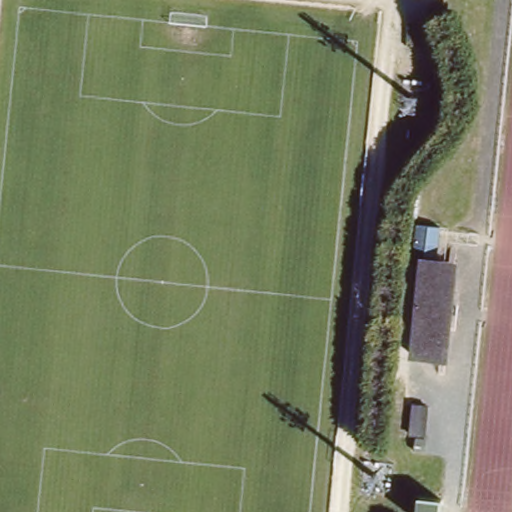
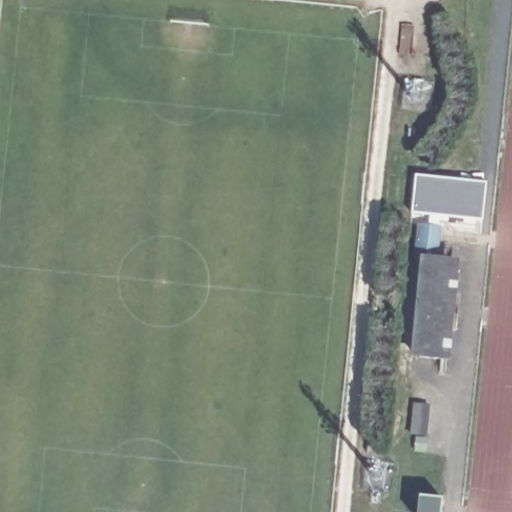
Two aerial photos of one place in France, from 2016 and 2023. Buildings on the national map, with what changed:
new [(415,175),(485,183),(481,222),(410,214),(415,175)]
unchanged [(416,356),(425,259),(413,257),(416,224),(438,227),(435,260),(455,262),(445,359),(416,356)]

